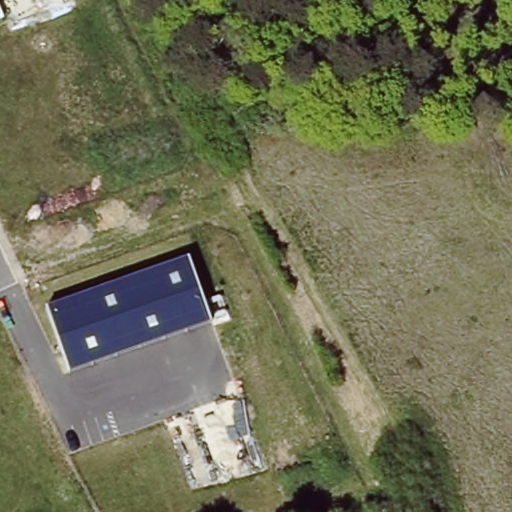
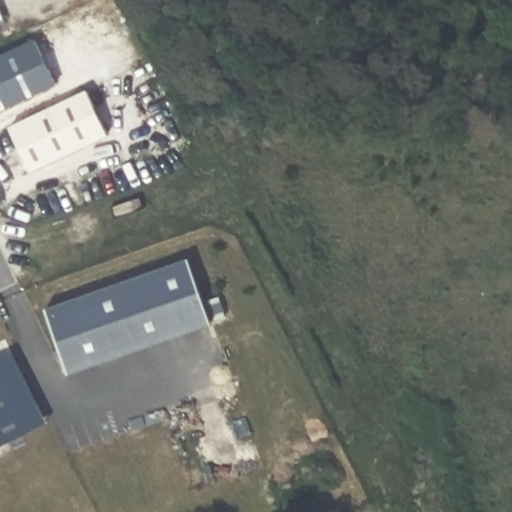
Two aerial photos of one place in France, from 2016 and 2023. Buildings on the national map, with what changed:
unchanged [(0,20),(0,7),(5,18),(0,20)]
new [(0,53),(34,37),(55,83),(0,109),(0,53)]
new [(31,173),(9,125),(87,88),(110,135),(31,173)]
unchanged [(188,259),(210,325),(69,373),(46,309),(188,259)]
new [(0,374),(28,430),(0,445),(0,374)]

